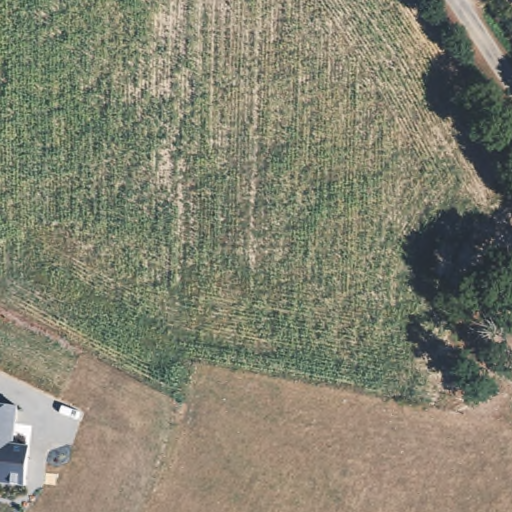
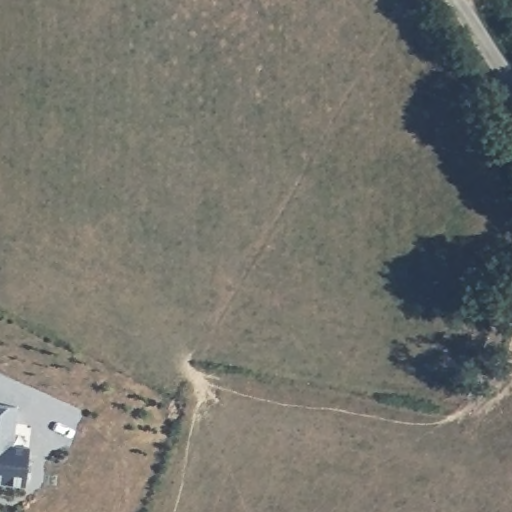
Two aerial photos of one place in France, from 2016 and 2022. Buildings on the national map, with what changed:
unchanged [(14,403),(11,445),(27,446),(22,489),(0,486),(0,403),(14,403)]

